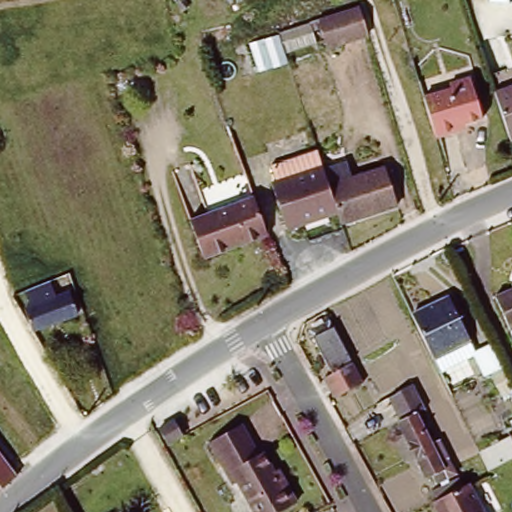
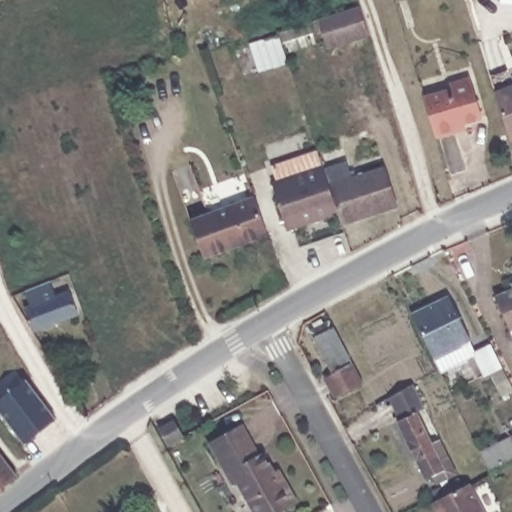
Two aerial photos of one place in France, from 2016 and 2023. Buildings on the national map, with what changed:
unchanged [(369,39),(327,47),(317,42),(284,55),(277,36),(315,26),(358,9),(369,39)]
unchanged [(423,97),(449,89),(447,84),(467,77),(480,118),(455,125),(457,131),(435,137),(423,97)]
unchanged [(505,125),(495,92),(512,85),(512,143),(511,144),(505,125)]
unchanged [(322,170),(335,214),(286,229),(271,184),(274,183),(269,167),(315,151),(322,170)]
unchanged [(335,214),(322,170),(343,162),(348,178),(367,171),(383,166),(395,204),(378,210),(339,222),(335,214)]
unchanged [(267,236),(203,258),(190,220),(252,197),(267,236)]
unchanged [(67,298),(75,320),(30,335),(24,313),(31,312),(28,301),(32,300),(29,291),(49,284),(52,293),(55,303),(67,298)]
unchanged [(510,286),(512,285),(512,289),(510,286)]
unchanged [(509,333),(493,299),(512,291),(512,332),(509,333)]
unchanged [(475,347),(488,341),(512,388),(512,390),(500,396),(488,372),(475,377),(470,366),(442,378),(411,311),(446,295),(475,347)]
unchanged [(336,400),(326,380),(333,376),(317,343),(337,332),(366,386),(336,400)]
new [(0,410),(0,398),(26,380),(56,419),(25,442),(0,410)]
unchanged [(410,384),(424,410),(415,415),(426,437),(429,435),(435,448),(432,450),(443,470),(425,479),(384,398),(410,384)]
unchanged [(285,479),(297,503),(290,507),(281,512),(268,512),(226,435),(245,425),(260,456),(262,455),(265,454),(280,482),(285,479)]
unchanged [(257,512),(242,482),(235,485),(212,441),(226,435),(268,512),(257,512)]
unchanged [(512,437),(512,461),(492,472),(482,452),(512,437)]
unchanged [(0,455),(15,476),(0,490),(0,455)]
unchanged [(472,485),(474,485),(487,512),(445,512),(440,501),(472,485)]

